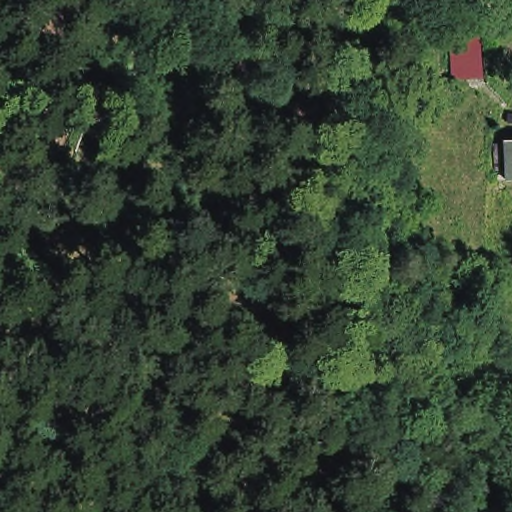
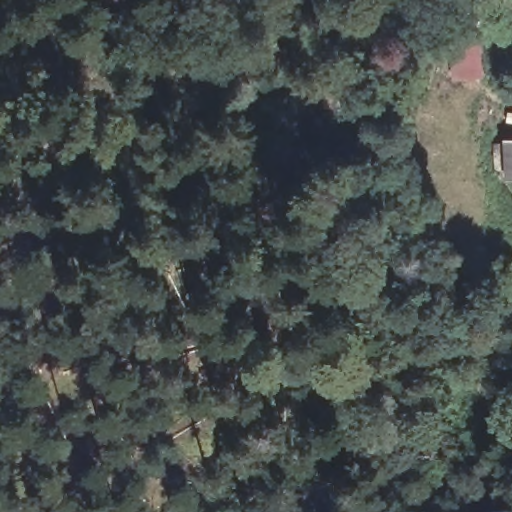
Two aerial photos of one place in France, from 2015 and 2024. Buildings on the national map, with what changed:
unchanged [(491,75),(467,77),(463,32),(486,29),(491,75)]
unchanged [(512,135),(512,171),(510,172),(510,159),(507,135),(512,135)]

